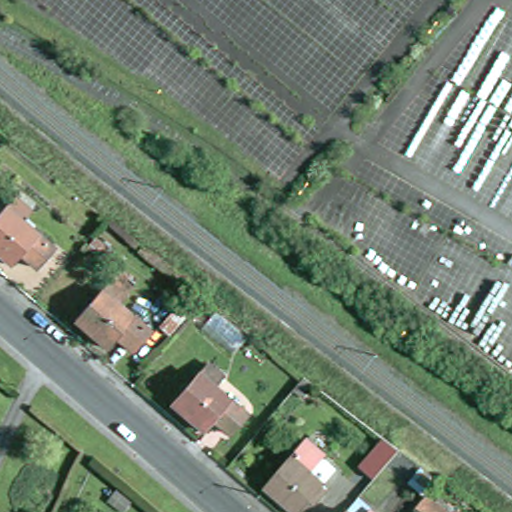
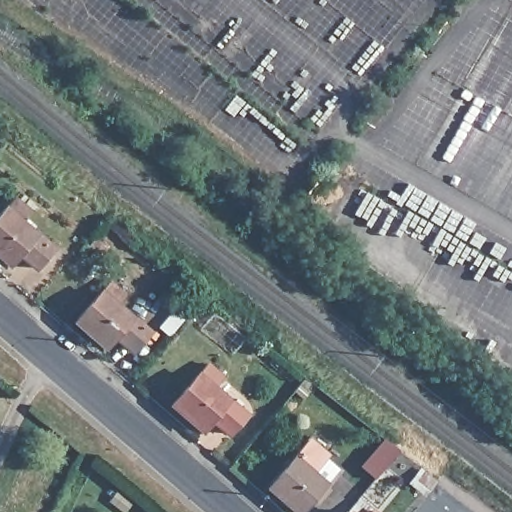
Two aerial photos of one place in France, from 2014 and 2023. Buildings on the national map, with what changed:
unchanged [(43,270),(27,255),(16,267),(0,253),(0,222),(12,209),(20,199),(36,213),(27,223),(59,250),(43,270)]
unchanged [(133,358),(116,344),(107,355),(77,328),(102,298),(112,287),(120,279),(135,292),(128,300),(118,311),(150,339),(133,358)]
unchanged [(177,314),(187,322),(172,342),(162,333),(177,314)]
unchanged [(230,436),(213,423),(204,434),(173,407),(200,377),(217,357),(231,368),(213,389),(245,417),(230,436)]
unchanged [(330,489),(317,505),(311,501),(301,512),(298,512),(270,486),(296,456),(311,439),(328,454),(314,472),(326,482),(325,484),(330,489)]
unchanged [(438,512),(425,501),(434,491),(461,512),(438,512)]
unchanged [(364,512),(357,512),(360,508),(364,512)]

